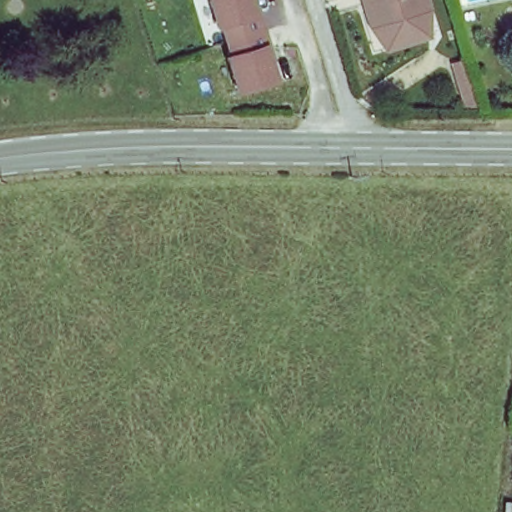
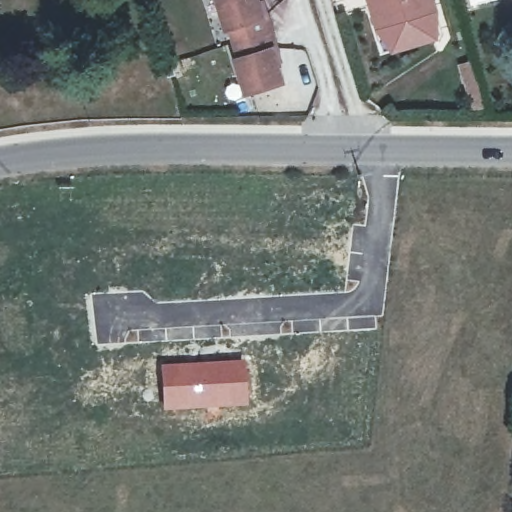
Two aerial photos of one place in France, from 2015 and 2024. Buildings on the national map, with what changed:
unchanged [(211,0),(256,0),(284,86),(244,95),(211,0)]
unchanged [(429,16),(385,28),(376,30),(371,7),(369,0),(432,0),(436,14),(429,16)]
unchanged [(435,41),(391,52),(385,28),(429,16),(435,41)]
new [(246,360),(248,407),(162,411),(158,364),(246,360)]
unchanged [(510,498),(512,499),(512,512),(510,512),(510,498)]

